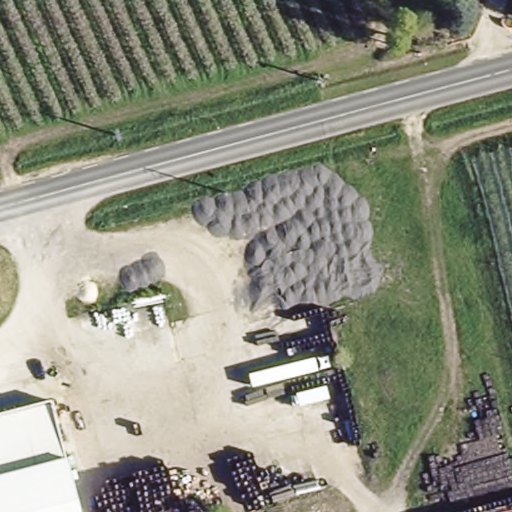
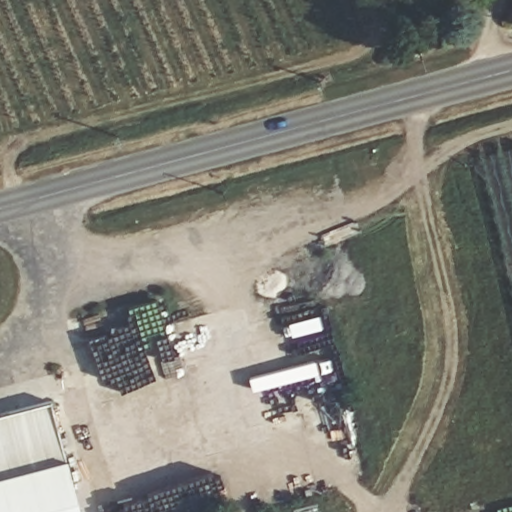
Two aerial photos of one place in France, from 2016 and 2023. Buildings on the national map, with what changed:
unchanged [(65,459),(78,512),(0,512),(0,413),(49,399),(65,459)]

